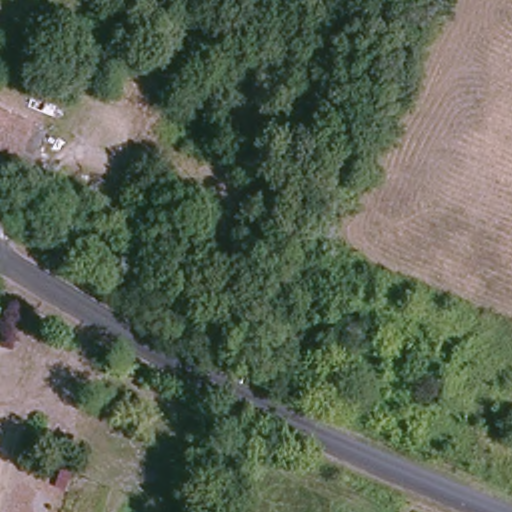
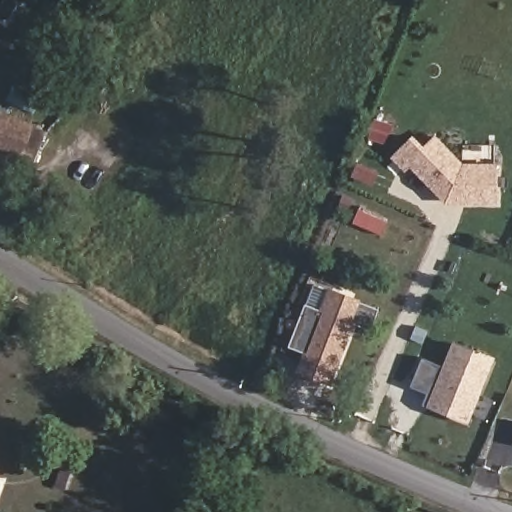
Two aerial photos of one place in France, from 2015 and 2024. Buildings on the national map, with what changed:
unchanged [(99,62),(86,56),(92,42),(105,50),(99,62)]
unchanged [(0,153),(0,115),(31,130),(17,162),(0,153)]
unchanged [(31,130),(36,117),(59,127),(40,172),(17,162),(31,130)]
new [(410,169),(402,174),(391,160),(416,135),(425,144),(436,133),(463,162),(498,162),(497,205),(447,204),(410,169)]
new [(372,328),(357,322),(331,387),(296,372),(302,352),(288,347),(315,281),(380,307),(372,328)]
new [(468,423),(422,405),(427,392),(410,386),(420,357),(442,366),(452,339),(495,357),(468,423)]

